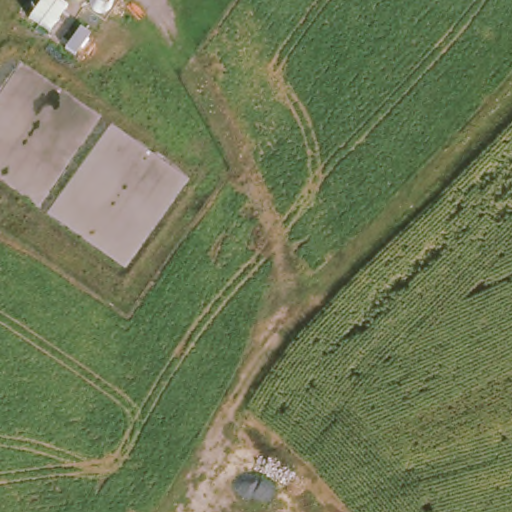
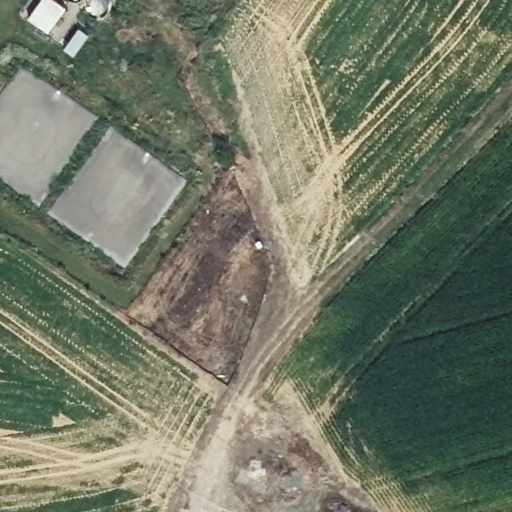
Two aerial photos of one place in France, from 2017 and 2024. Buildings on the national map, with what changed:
unchanged [(92,0),(112,0),(109,5),(98,6),(92,2),(92,0)]

